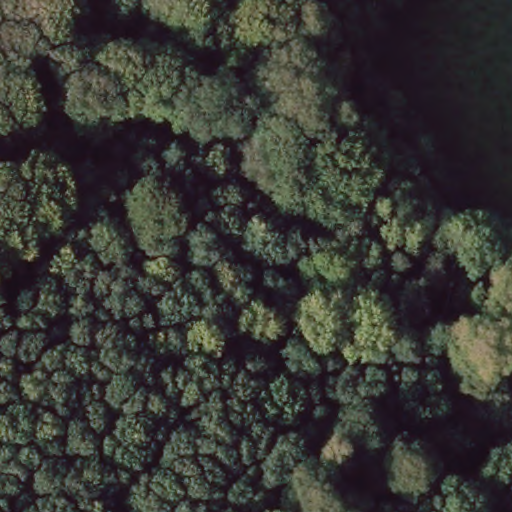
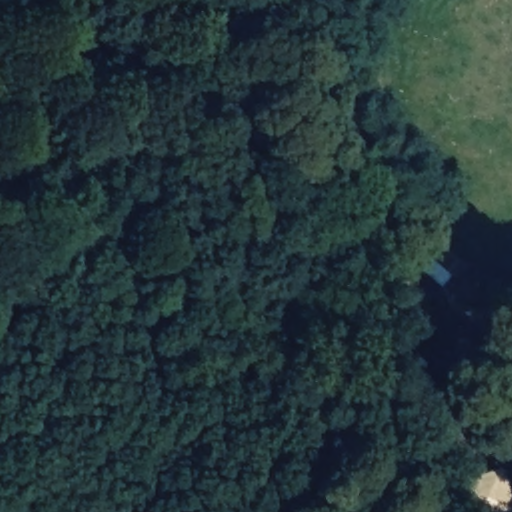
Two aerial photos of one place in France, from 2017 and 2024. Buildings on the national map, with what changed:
unchanged [(458,486),(499,473),(512,510),(512,512),(467,512),(458,486)]

